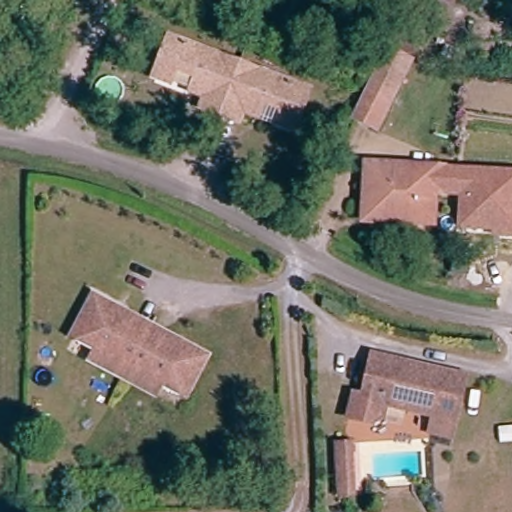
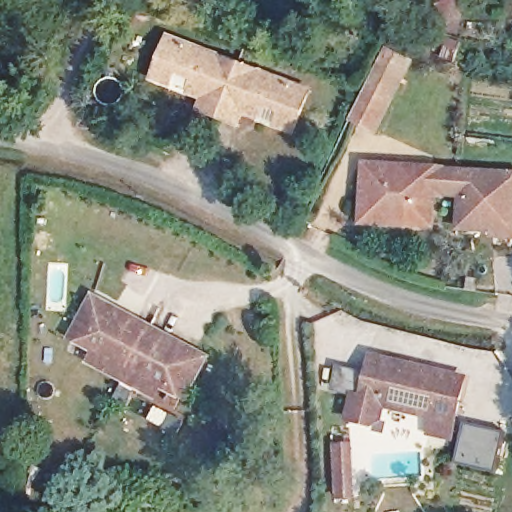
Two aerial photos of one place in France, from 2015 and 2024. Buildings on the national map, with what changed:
unchanged [(247,114),(242,129),(204,115),(210,100),(195,94),(173,85),(157,80),(172,40),(315,93),(300,134),(284,127),(262,119),(247,114)]
unchanged [(395,44),(418,54),(382,126),(360,116),(395,44)]
unchanged [(448,164),(448,167),(512,169),(512,238),(490,237),(490,232),(457,230),(457,198),(453,198),(452,175),(363,171),(362,159),(448,164)]
unchanged [(452,175),(453,198),(436,197),(436,232),(365,229),(363,171),(452,175)]
unchanged [(122,386),(88,368),(97,354),(71,340),(92,300),(209,364),(189,403),(163,390),(156,404),(122,386)]
unchanged [(341,439),(344,412),(352,413),(358,365),(457,380),(446,448),(423,445),(425,426),(377,420),(375,432),(363,442),(341,439)]
new [(465,423),(505,433),(494,472),(454,462),(465,423)]
unchanged [(347,501),(330,504),(328,448),(346,447),(347,501)]

